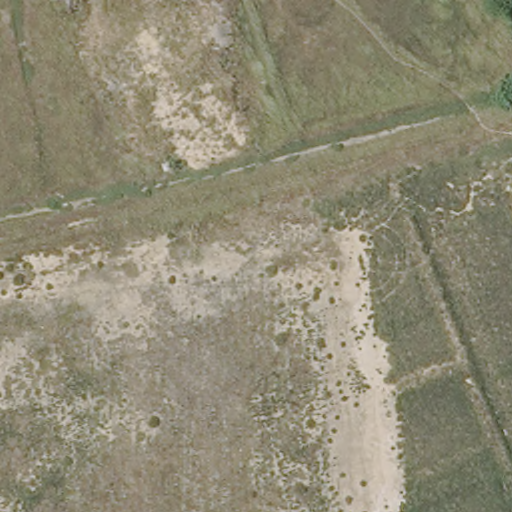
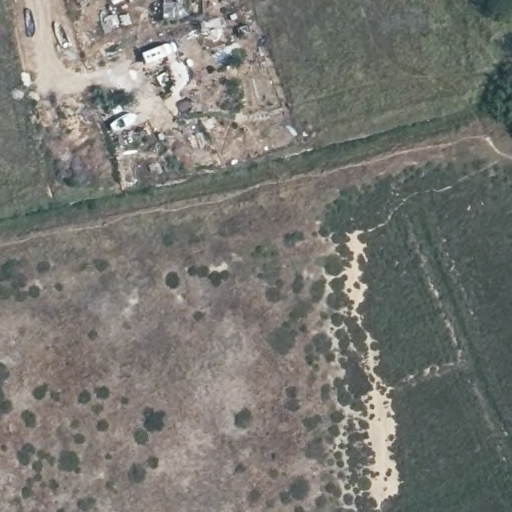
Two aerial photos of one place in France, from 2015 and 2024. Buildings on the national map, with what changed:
[]

